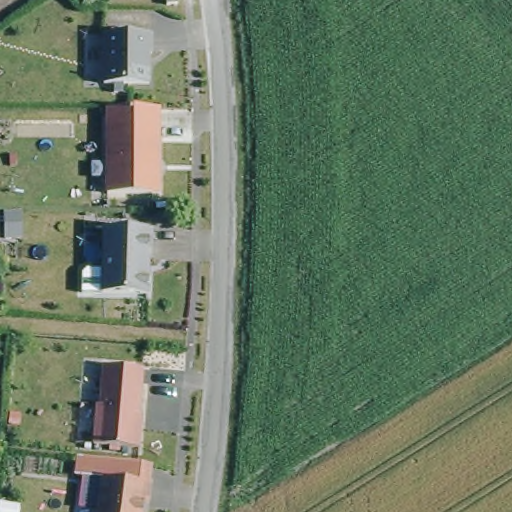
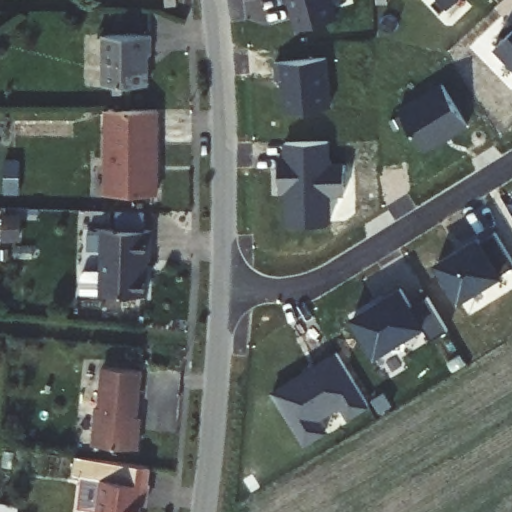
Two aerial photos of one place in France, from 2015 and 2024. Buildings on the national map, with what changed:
new [(175,5),(165,5),(164,0),(175,0),(175,5)]
new [(290,0),(332,0),(337,16),(299,28),(290,0)]
new [(450,5),(445,0),(455,0),(450,5)]
new [(494,50),(512,32),(512,69),(494,50)]
unchanged [(151,54),(148,54),(148,85),(103,85),(104,35),(150,35),(151,54)]
new [(279,62),(328,58),(332,107),(283,112),(279,62)]
new [(399,110),(442,82),(469,123),(426,150),(399,110)]
unchanged [(155,195),(106,196),(105,109),(155,109),(155,195)]
new [(283,143),(330,142),(330,164),(344,163),(345,196),(331,196),(332,225),(285,225),(284,193),(280,193),(280,174),(283,143)]
unchanged [(19,232),(19,213),(19,207),(32,206),(32,213),(33,231),(19,232)]
unchanged [(152,227),(152,257),(145,257),(145,269),(147,269),(147,292),(82,291),(82,272),(87,268),(102,268),(103,226),(152,227)]
new [(434,262),(480,234),(483,240),(497,232),(512,257),(512,269),(459,301),(457,298),(434,262)]
new [(350,316),(402,284),(415,305),(426,298),(447,331),(432,341),(424,329),(387,351),(370,350),(350,316)]
new [(341,406),(320,418),(327,430),(305,444),(270,391),(336,352),(370,406),(349,419),(341,406)]
unchanged [(135,427),(139,427),(135,447),(92,444),(95,405),(97,405),(101,364),(140,368),(135,427)]
unchanged [(145,497),(140,496),(139,512),(95,512),(100,473),(86,472),(74,470),(76,451),(89,453),(147,460),(145,478),(147,478),(145,497)]

